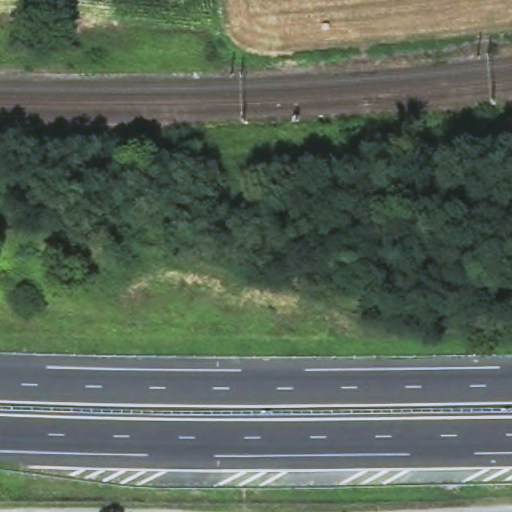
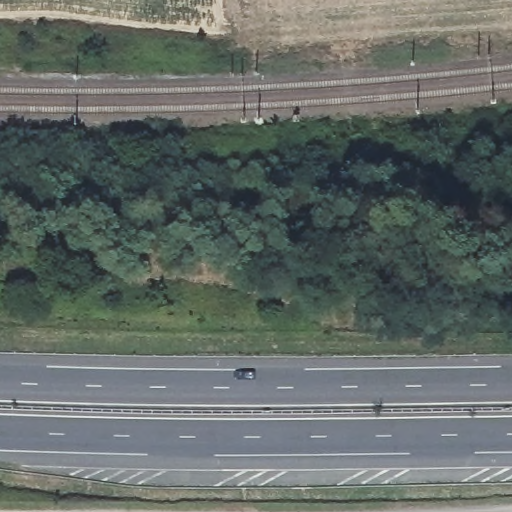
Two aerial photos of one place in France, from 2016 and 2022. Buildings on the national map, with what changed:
[]

